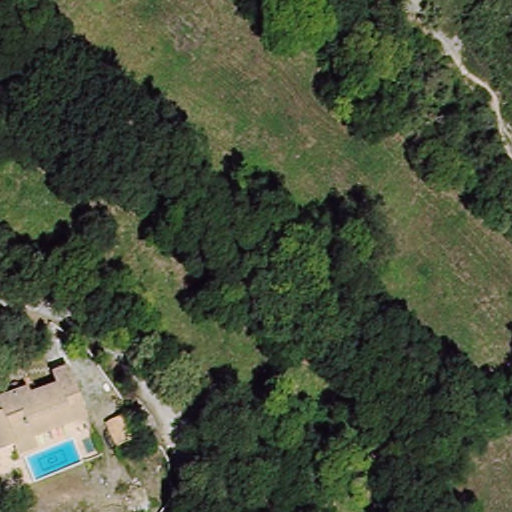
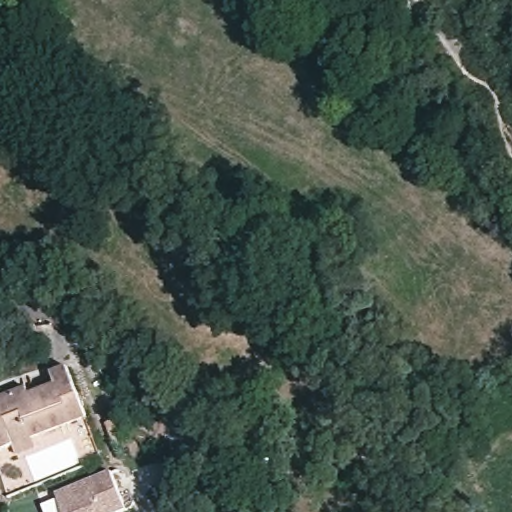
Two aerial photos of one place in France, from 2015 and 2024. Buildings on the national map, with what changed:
unchanged [(55,379),(52,369),(72,364),(89,422),(54,433),(57,439),(0,457),(0,396),(55,379)]
unchanged [(127,419),(137,444),(116,451),(107,426),(127,419)]
new [(58,493),(112,472),(126,512),(65,512),(58,493)]

